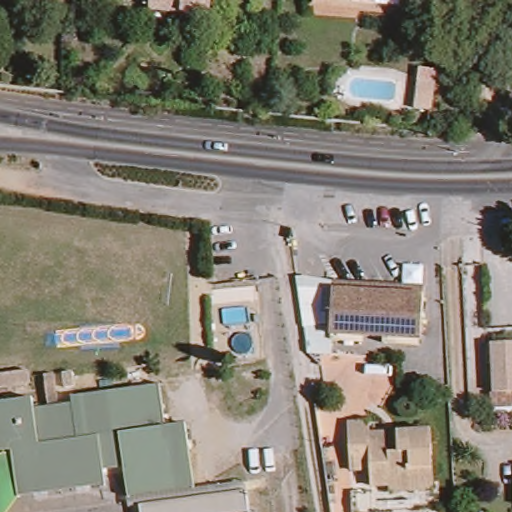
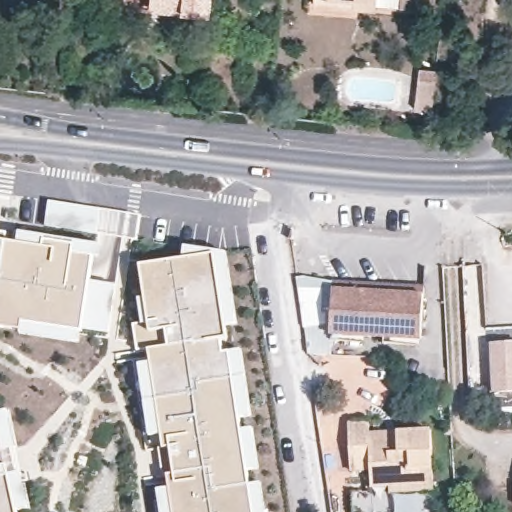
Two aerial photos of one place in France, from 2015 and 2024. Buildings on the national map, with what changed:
unchanged [(168,10),(167,6),(150,5),(151,0),(210,0),(209,15),(168,10)]
unchanged [(348,7),(348,1),(336,0),(372,0),(372,10),(348,7)]
unchanged [(431,115),(415,114),(418,84),(434,85),(431,115)]
new [(100,209),(96,237),(45,230),(49,199),(100,209)]
new [(44,246),(45,239),(75,244),(74,251),(94,254),(90,278),(115,283),(108,333),(80,328),(22,321),(20,328),(0,326),(0,238),(44,246)]
new [(148,320),(140,265),(214,255),(227,337),(222,338),(224,353),(229,352),(253,512),(172,512),(167,474),(162,475),(159,450),(165,450),(149,348),(139,352),(134,324),(148,320)]
new [(335,290),(335,301),(337,342),(333,355),(309,353),(297,277),(334,282),(428,290),(335,290)]
unchanged [(335,290),(428,290),(427,301),(335,301),(335,290)]
unchanged [(427,343),(337,342),(335,301),(427,301),(427,343)]
unchanged [(497,342),(512,342),(512,392),(499,392),(497,342)]
demolished [(29,368),(30,378),(31,381),(0,385),(0,372),(29,368)]
demolished [(104,483),(78,487),(20,495),(20,497),(18,497),(12,449),(0,451),(0,402),(32,398),(34,410),(73,404),(71,395),(73,395),(73,397),(159,386),(158,383),(160,383),(166,426),(186,424),(191,461),(194,485),(246,479),(248,489),(142,502),(141,493),(130,495),(130,497),(129,497),(129,495),(124,465),(104,468),(104,483)]
unchanged [(391,493),(391,482),(372,484),(371,471),(350,472),(347,425),(369,424),(370,434),(397,432),(431,431),(433,480),(434,490),(391,493)]
new [(17,512),(0,512),(0,436),(17,512)]
demolished [(250,506),(253,506),(256,507),(258,511),(258,512),(143,512),(142,502),(248,489),(250,506)]

